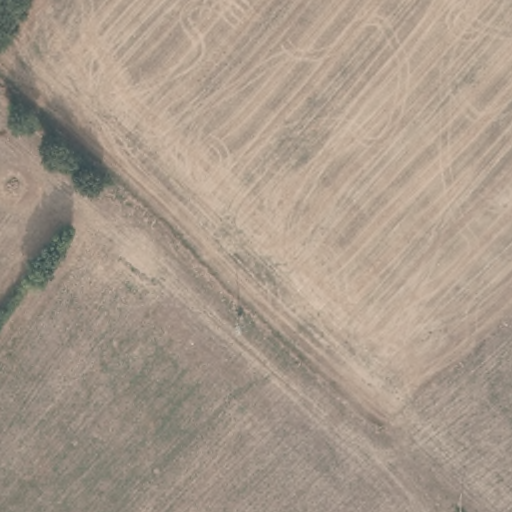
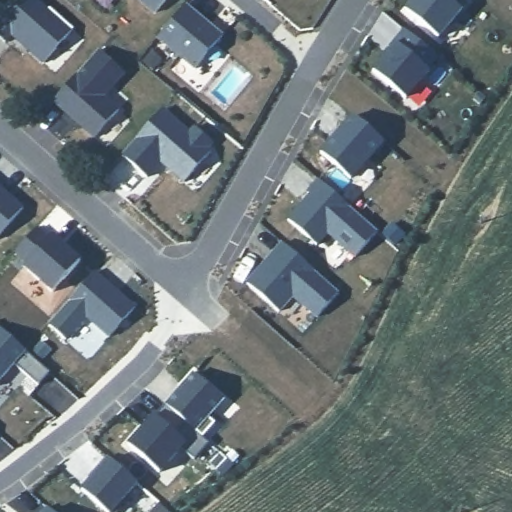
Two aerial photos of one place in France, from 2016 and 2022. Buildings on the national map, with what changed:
new [(13,37),(7,44),(0,38),(0,24),(23,0),(38,0),(75,30),(43,64),(13,37)]
new [(156,13),(140,0),(167,0),(156,13)]
new [(416,0),(467,0),(460,8),(463,10),(439,38),(407,11),(416,0)]
new [(186,5),(223,37),(196,69),(159,38),(186,5)]
new [(382,62),(397,45),(395,43),(406,30),(439,57),(428,70),(430,71),(407,99),(374,72),(382,62)]
new [(99,51),(125,73),(106,97),(120,109),(94,138),(54,103),(99,51)]
new [(163,109),(190,131),(194,126),(217,146),(185,183),(162,164),(149,180),(124,156),(163,109)]
new [(354,114),(386,143),(351,179),(321,152),(354,114)]
new [(311,194),(308,191),(318,179),(378,233),(356,259),(328,235),(319,246),(289,219),(311,194)]
new [(25,208),(0,237),(0,187),(25,208)]
new [(25,268),(29,263),(16,252),(38,227),(51,239),(54,235),(83,260),(55,294),(25,268)]
new [(282,242),(339,293),(317,318),(294,299),(281,313),(247,282),(282,242)]
new [(98,272),(137,307),(109,338),(89,320),(67,341),(51,325),(98,272)]
new [(50,373),(40,384),(17,365),(0,382),(0,329),(50,373)]
new [(226,400),(208,419),(214,425),(203,437),(187,423),(177,434),(188,445),(162,473),(129,444),(194,373),(226,400)]
new [(140,484),(116,512),(107,512),(83,489),(110,459),(140,484)]
new [(52,512),(42,512),(47,507),(52,512)]

